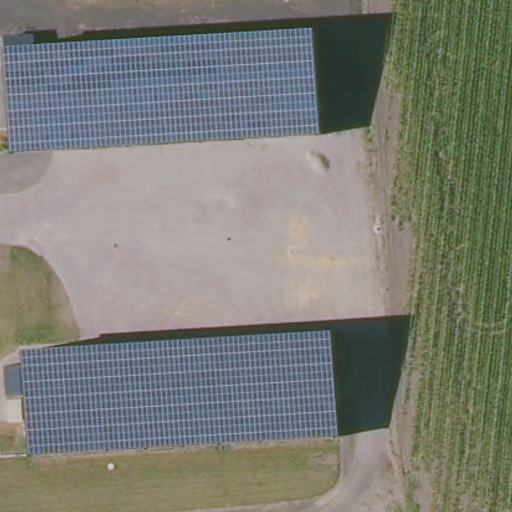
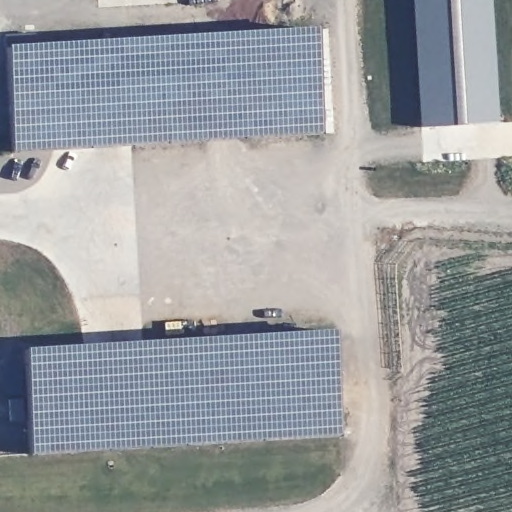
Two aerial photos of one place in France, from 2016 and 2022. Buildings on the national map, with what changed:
new [(422,127),(414,0),(490,0),(497,120),(422,127)]
unchanged [(7,46),(315,29),(323,134),(14,153),(7,46)]
unchanged [(25,348),(335,330),(341,435),(30,455),(25,348)]

